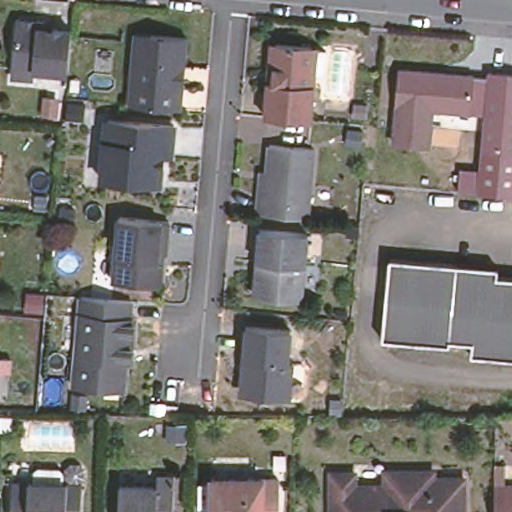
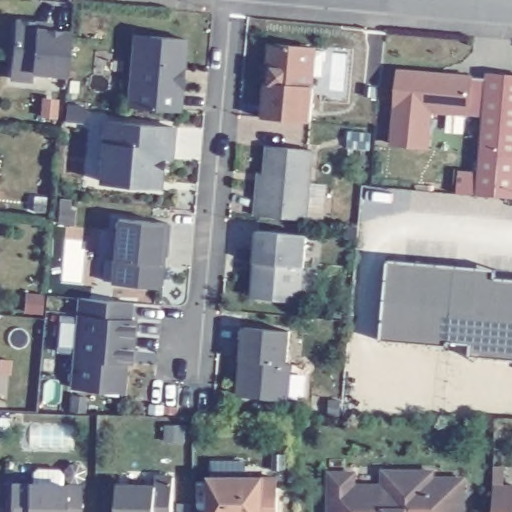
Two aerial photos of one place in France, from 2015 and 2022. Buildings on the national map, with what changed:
unchanged [(9,83),(10,71),(13,30),(20,23),(30,24),(38,32),(69,34),(65,76),(30,73),(29,85),(9,83)]
unchanged [(178,112),(127,108),(133,37),(184,41),(178,112)]
unchanged [(271,83),(280,83),(281,69),(279,69),(274,63),(274,49),(281,44),(316,48),(322,48),(319,75),(314,123),(268,120),(271,83)]
unchanged [(428,148),(394,146),(399,74),(489,81),(486,116),(431,113),(428,148)]
unchanged [(512,77),(512,199),(483,197),(462,195),(464,173),(481,175),(483,154),(486,116),(489,81),(489,76),(512,77)]
unchanged [(158,184),(136,182),(136,177),(128,176),(127,182),(98,179),(103,118),(171,124),(168,157),(160,156),(158,184)]
unchanged [(266,174),(268,148),(312,152),(307,222),(256,217),(258,199),(260,174),(266,174)]
unchanged [(172,224),(170,255),(161,255),(161,265),(164,270),(164,283),(158,289),(117,286),(122,221),(172,224)]
unchanged [(255,265),(258,232),(307,236),(304,268),(301,304),(258,300),(253,295),(253,283),(259,277),(259,265),(255,265)]
unchanged [(483,277),(512,279),(512,362),(477,359),(478,346),(454,345),(454,350),(385,344),(392,263),(459,268),(484,270),(483,277)]
unchanged [(129,365),(127,393),(76,390),(84,300),(134,304),(133,321),(138,321),(136,351),(136,366),(129,365)]
unchanged [(289,333),(286,366),(293,366),(289,404),(244,399),(239,394),(241,380),(247,375),(248,362),(243,362),(246,329),(289,333)]
unchanged [(14,492),(14,480),(19,476),(41,476),(45,481),(45,493),(64,493),(64,512),(9,512),(9,492),(14,492)]
unchanged [(152,491),(152,480),(171,480),(170,512),(115,512),(115,491),(152,491)]
unchanged [(279,482),(279,512),(213,512),(213,482),(279,482)]
unchanged [(354,483),(354,497),(384,497),(384,483),(392,483),(432,484),(432,492),(463,492),(462,512),(329,512),(329,484),(354,483)]
unchanged [(512,485),(512,512),(496,512),(497,485),(512,485)]

